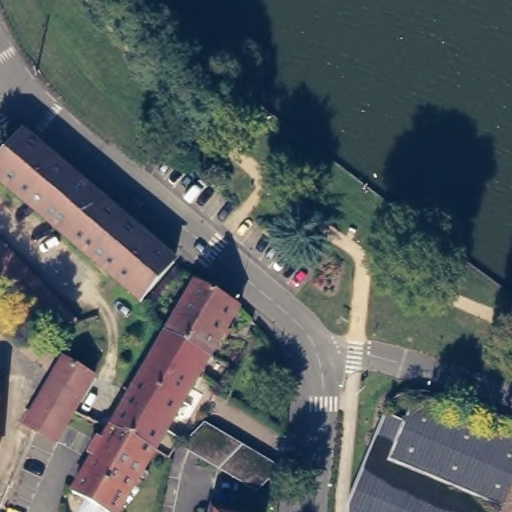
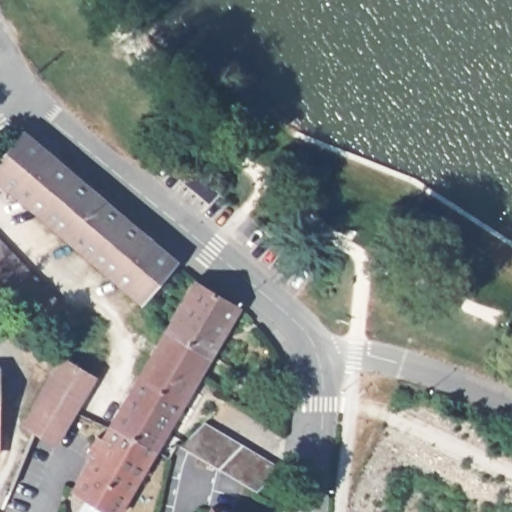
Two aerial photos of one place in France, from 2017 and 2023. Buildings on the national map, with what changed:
unchanged [(0,176),(0,158),(24,130),(44,147),(47,144),(55,151),(52,155),(92,188),(95,184),(108,192),(103,197),(140,229),(145,224),(158,235),(153,240),(174,258),(141,296),(0,176)]
unchanged [(51,336),(0,282),(0,234),(85,325),(51,336)]
unchanged [(245,302),(216,351),(172,325),(202,277),(245,302)]
unchanged [(216,351),(160,446),(115,423),(172,325),(216,351)]
unchanged [(57,431),(33,420),(25,416),(63,350),(94,368),(73,403),(57,431)]
unchanged [(5,385),(0,385),(0,373),(5,373),(5,385)]
demolished [(389,410),(407,414),(417,394),(512,434),(512,512),(351,512),(352,500),(389,410)]
unchanged [(204,419),(280,464),(257,486),(188,445),(204,419)]
unchanged [(160,446),(121,512),(86,512),(83,510),(92,496),(77,487),(115,423),(160,446)]
unchanged [(212,507),(232,512),(211,512),(212,507)]

